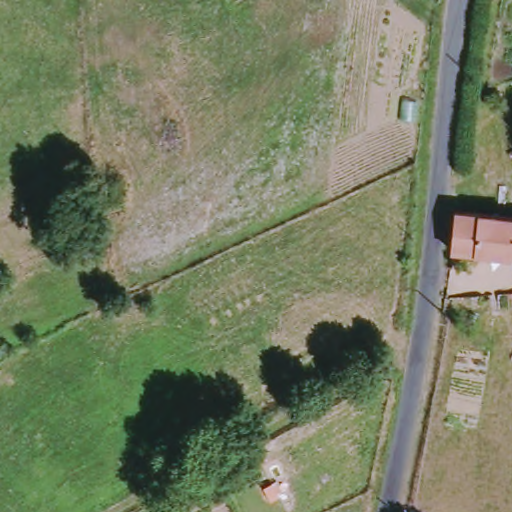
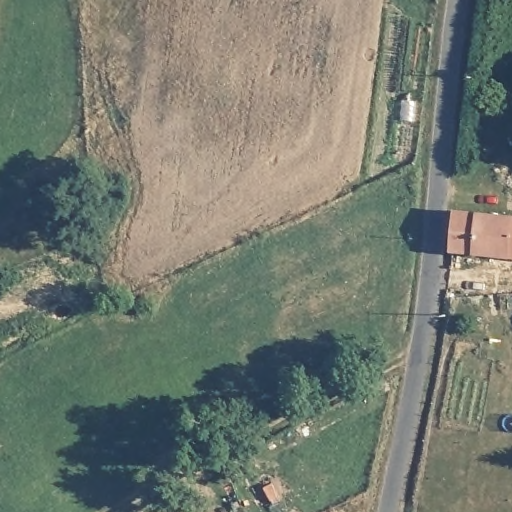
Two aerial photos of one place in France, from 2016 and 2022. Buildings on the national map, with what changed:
unchanged [(512,220),(512,256),(456,247),(461,214),(512,220)]

